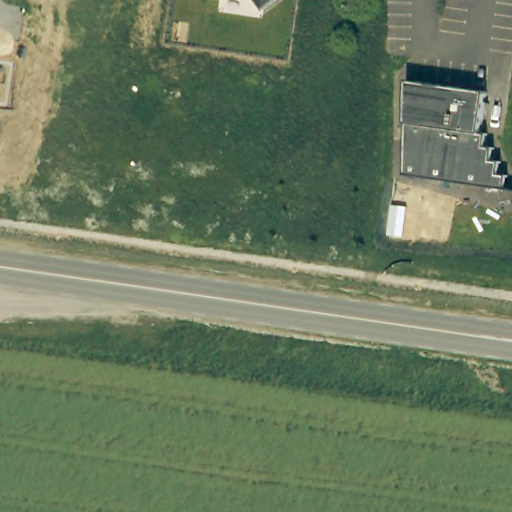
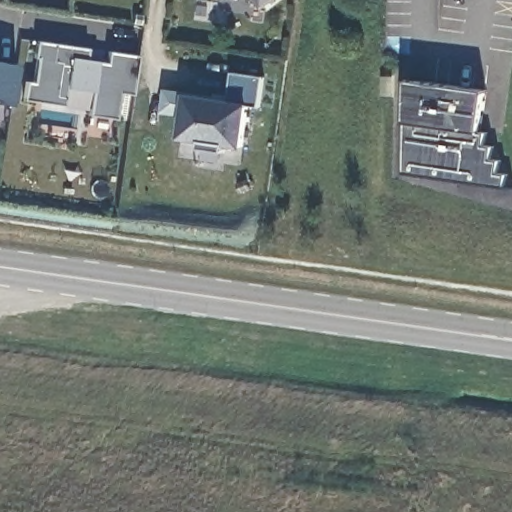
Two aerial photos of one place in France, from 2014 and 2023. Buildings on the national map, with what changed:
unchanged [(262,9),(255,0),(274,0),(262,9)]
new [(84,60),(95,61),(95,63),(106,64),(108,52),(137,56),(131,94),(119,91),(115,119),(90,115),(93,91),(66,88),(64,105),(25,100),(27,82),(34,84),(38,58),(35,58),(37,42),(86,50),(84,60)]
unchanged [(15,65),(9,105),(0,104),(0,63),(15,65)]
new [(260,106),(250,106),(245,148),(227,146),(226,151),(201,148),(202,142),(180,140),(183,116),(162,114),(165,88),(186,94),(227,100),(234,72),(264,77),(260,106)]
unchanged [(486,132),(492,134),(491,146),(499,147),(497,160),(506,161),(504,174),(512,175),(512,179),(511,187),(512,188),(512,189),(409,175),(410,123),(412,80),(492,91),(486,132)]

